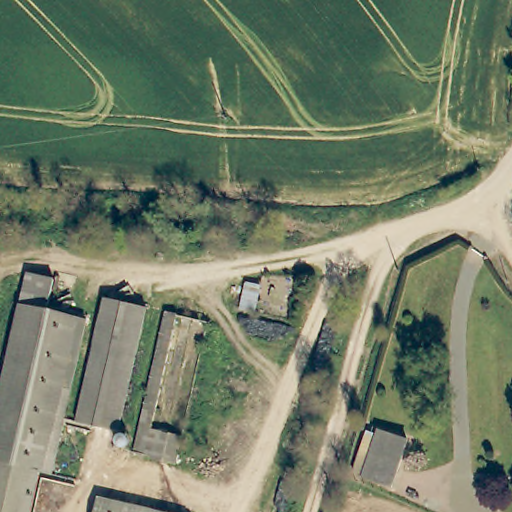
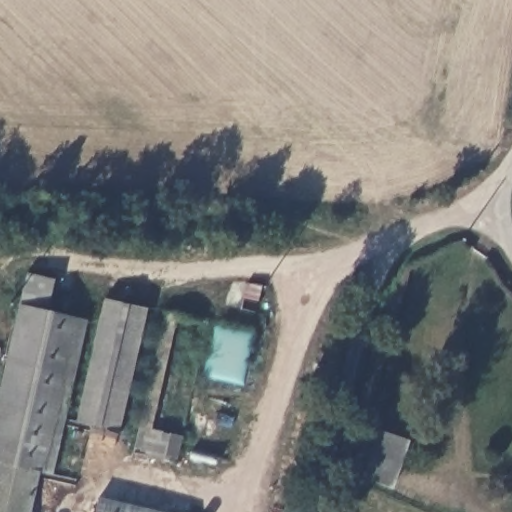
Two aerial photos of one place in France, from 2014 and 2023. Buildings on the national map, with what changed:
unchanged [(47,308),(80,315),(45,470),(38,468),(28,512),(0,512),(0,390),(28,270),(55,275),(47,308)]
unchanged [(260,285),(257,314),(242,312),(246,283),(260,285)]
unchanged [(80,423),(106,298),(147,307),(120,432),(80,423)]
unchanged [(135,454),(168,313),(211,323),(178,464),(135,454)]
unchanged [(368,478),(357,474),(371,433),(382,437),(383,433),(411,442),(395,489),(367,480),(368,478)]
unchanged [(99,498),(162,512),(96,512),(99,498)]

